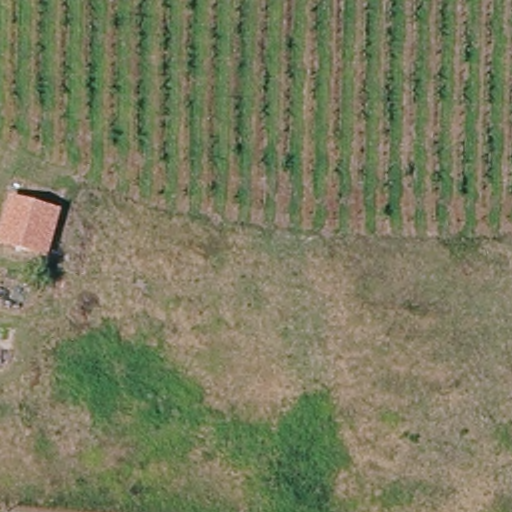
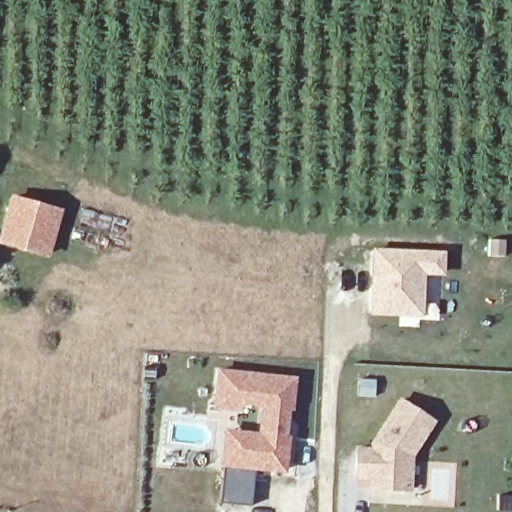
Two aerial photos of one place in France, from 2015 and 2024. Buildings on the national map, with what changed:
unchanged [(0,228),(10,195),(62,209),(50,257),(0,244),(0,228)]
new [(376,250),(442,253),(442,272),(422,271),(421,314),(372,311),(376,250)]
new [(278,468),(256,466),(252,505),(221,501),(225,462),(228,430),(243,432),(262,434),(265,403),(241,400),(240,407),(217,404),(221,370),(295,378),(292,406),(288,406),(286,437),(288,437),(286,458),(285,469),(278,468)]
new [(356,450),(371,450),(371,443),(398,401),(431,422),(408,455),(407,490),(368,488),(369,478),(354,477),(356,450)]

